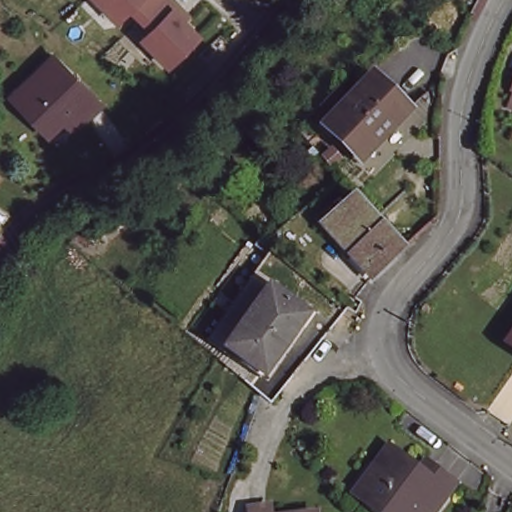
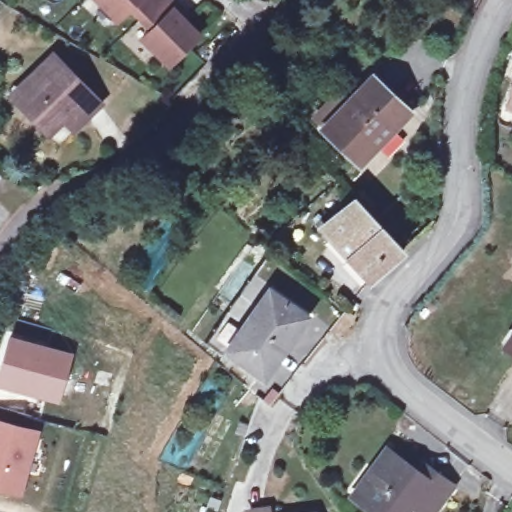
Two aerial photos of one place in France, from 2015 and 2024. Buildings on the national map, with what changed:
unchanged [(168,65),(142,39),(151,29),(140,17),(130,7),(117,20),(94,0),(173,0),(181,9),(188,15),(183,20),(199,35),(168,65)]
unchanged [(93,105),(81,119),(71,106),(40,131),(7,94),(48,56),(93,105)]
unchanged [(403,110),(355,165),(315,130),(363,76),(403,110)]
unchanged [(506,110),(512,96),(512,112),(506,110)]
unchanged [(347,196),(400,255),(361,283),(313,227),(347,196)]
unchanged [(306,325),(281,355),(273,348),(252,375),(225,352),(271,296),(306,325)]
unchanged [(503,344),(512,331),(512,350),(503,344)]
new [(15,336),(91,359),(78,403),(1,381),(15,336)]
new [(0,419),(41,430),(24,492),(0,486),(0,419)]
unchanged [(409,471),(405,476),(413,481),(424,469),(443,482),(422,512),(415,512),(407,507),(403,512),(382,512),(367,501),(361,507),(345,493),(375,448),(409,471)]

